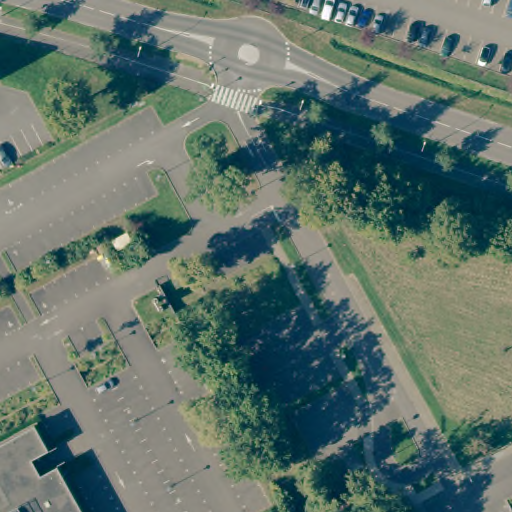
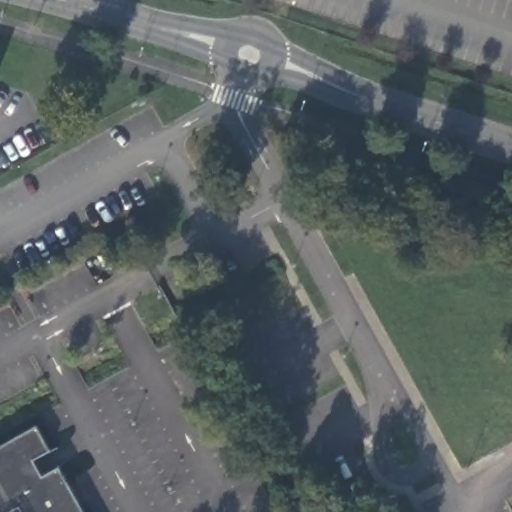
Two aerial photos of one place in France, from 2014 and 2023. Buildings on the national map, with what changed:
unchanged [(129,233),(134,242),(119,251),(114,242),(129,233)]
unchanged [(50,451),(34,460),(42,476),(59,467),(84,512),(0,512),(0,445),(36,426),(50,451)]

